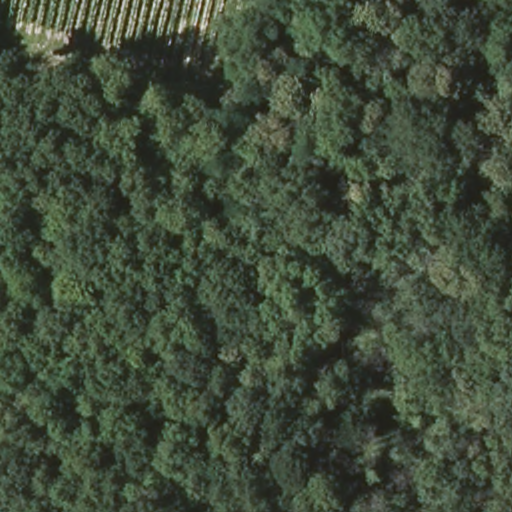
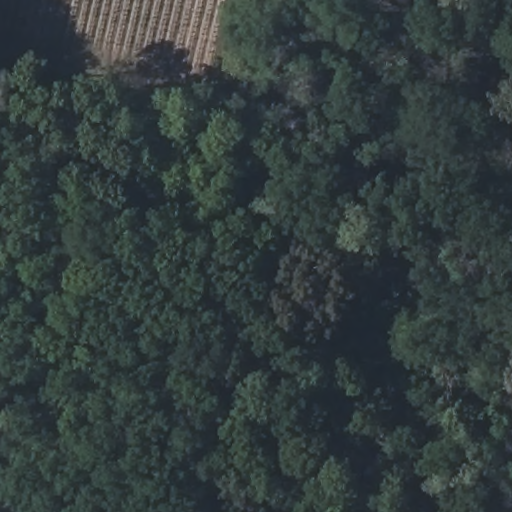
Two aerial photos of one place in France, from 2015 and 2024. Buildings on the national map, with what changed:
[]

